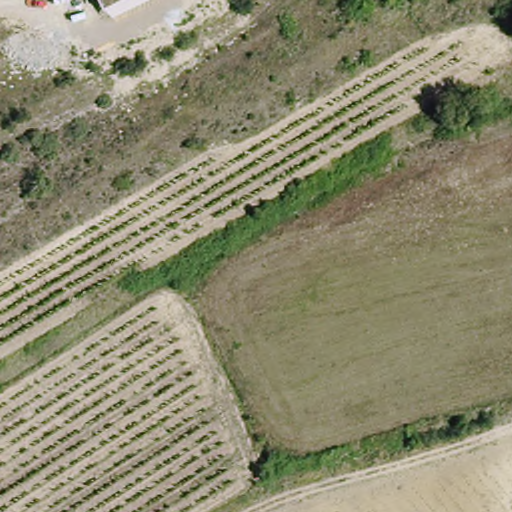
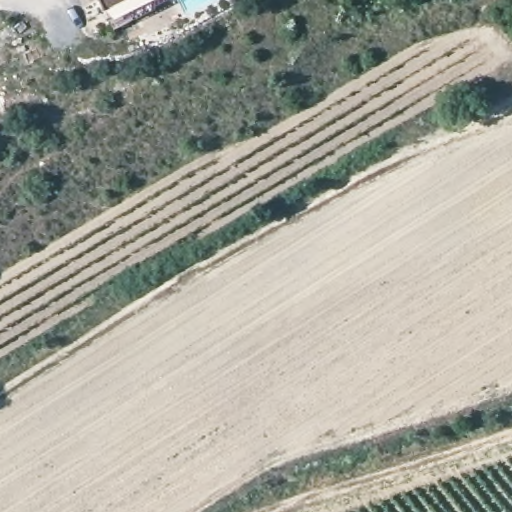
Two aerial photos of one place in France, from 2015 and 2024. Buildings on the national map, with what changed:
unchanged [(100,0),(123,0),(106,8),(100,0)]

